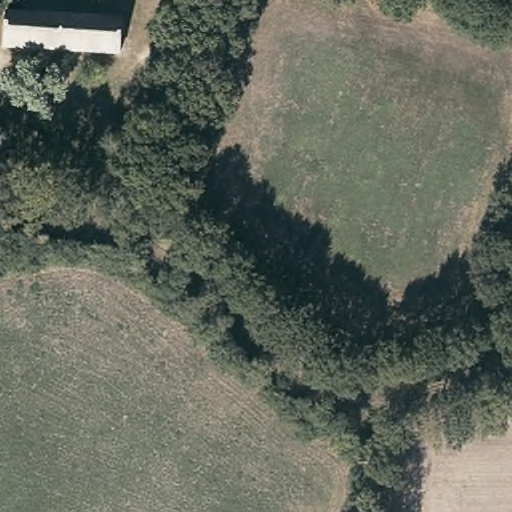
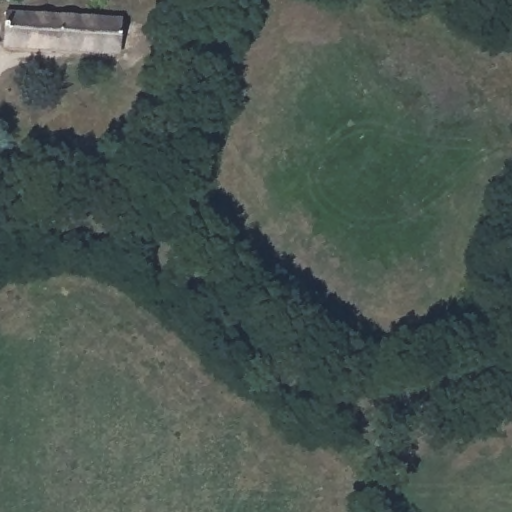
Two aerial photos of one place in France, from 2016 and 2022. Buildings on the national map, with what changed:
unchanged [(123,20),(119,55),(4,41),(8,7),(123,20)]

